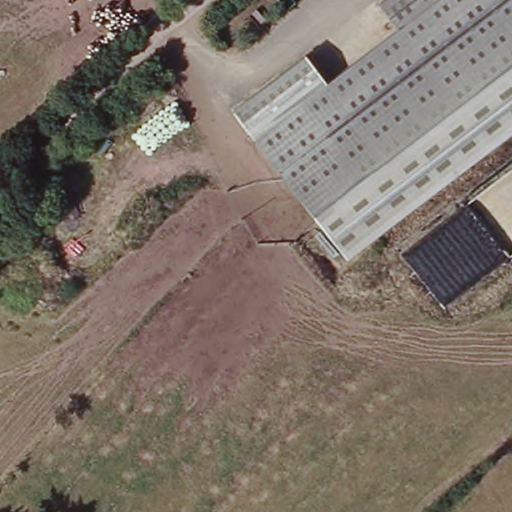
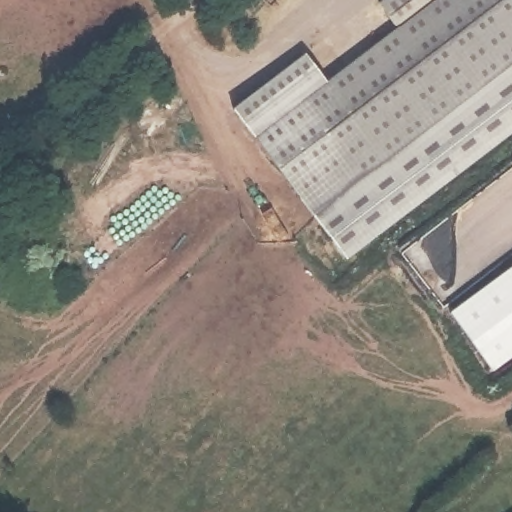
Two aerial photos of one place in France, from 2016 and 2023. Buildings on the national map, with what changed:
unchanged [(297,208),(254,152),(261,147),(397,37),(395,34),(377,12),(393,0),(512,0),(512,67),(310,226),(297,208)]
unchanged [(325,87),(395,34),(397,37),(261,147),(255,139),(325,87)]
unchanged [(303,55),(325,87),(255,139),(252,142),(231,111),(303,55)]
unchanged [(310,226),(512,67),(512,131),(349,256),(310,226)]
new [(512,359),(494,372),(450,313),(512,268),(512,359)]

